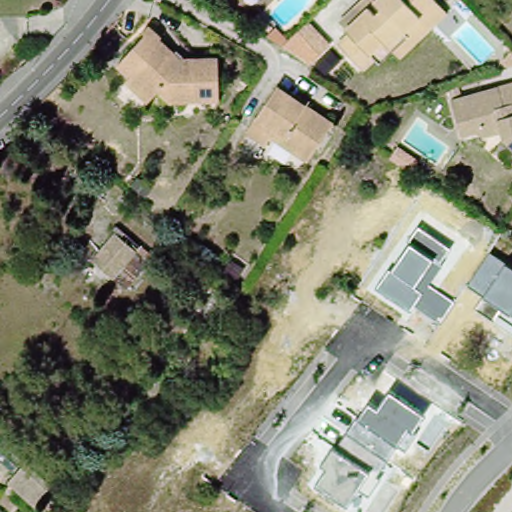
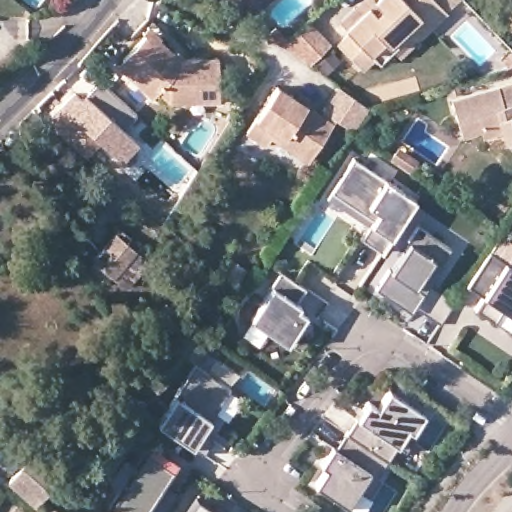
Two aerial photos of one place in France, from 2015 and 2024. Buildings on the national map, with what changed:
unchanged [(367,69),(343,44),(355,32),(351,27),(345,21),(366,0),(378,0),(441,0),(452,12),(407,57),(400,49),(385,63),(380,57),(367,69)]
new [(325,45),(307,62),(282,45),(268,36),(273,27),(290,37),(304,23),(325,45)]
unchanged [(125,82),(131,76),(117,64),(122,59),(147,33),(143,30),(150,24),(162,35),(159,39),(179,58),(217,57),(219,99),(169,100),(158,91),(153,96),(148,102),(125,82)]
unchanged [(272,139),(252,126),(283,80),(338,115),(312,155),(300,147),(276,132),(272,139)]
new [(45,122),(73,91),(83,100),(100,81),(137,115),(123,129),(140,144),(123,162),(100,142),(87,157),(77,149),(45,122)]
unchanged [(507,135),(505,127),(485,133),(483,129),(463,134),(453,97),(512,81),(512,140),(507,135)]
new [(355,157),(417,200),(382,251),(361,237),(369,226),(327,197),(332,192),(355,157)]
unchanged [(375,286),(387,269),(407,242),(416,227),(449,248),(429,283),(455,302),(441,322),(415,306),(410,310),(375,286)]
unchanged [(96,258),(120,229),(147,252),(122,281),(96,258)]
unchanged [(490,251),(505,262),(512,266),(512,314),(510,312),(504,307),(495,320),(477,307),(484,295),(467,285),(490,251)]
new [(312,292),(297,315),(304,319),(287,343),(252,317),(282,273),(312,292)]
new [(197,366),(232,390),(203,432),(214,440),(205,452),(203,455),(158,423),(197,366)]
unchanged [(364,512),(356,512),(347,505),(313,485),(325,467),(320,465),(332,447),(337,452),(358,418),(367,402),(377,408),(389,391),(423,413),(413,430),(417,433),(407,450),(398,443),(387,459),(377,476),(380,478),(368,496),(373,500),(364,512)]
new [(168,466),(173,469),(170,475),(163,485),(177,495),(166,512),(115,512),(109,508),(147,451),(168,466)]
unchanged [(24,462),(51,485),(35,504),(7,481),(24,462)]
unchanged [(197,497),(218,512),(187,512),(197,497)]

